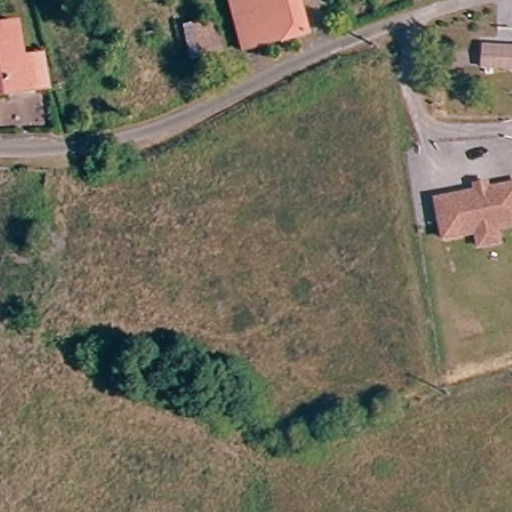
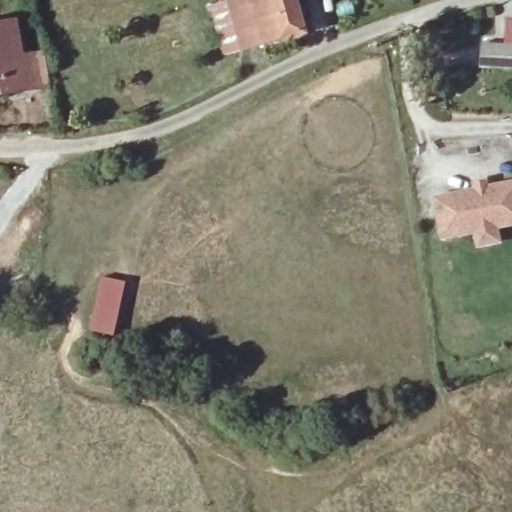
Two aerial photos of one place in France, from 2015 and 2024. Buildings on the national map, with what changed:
unchanged [(300,32),(237,49),(233,31),(225,0),(294,0),(300,32)]
unchanged [(14,22),(18,50),(37,50),(41,85),(23,85),(0,88),(0,24),(14,22)]
unchanged [(512,68),(490,69),(490,64),(488,50),(512,48),(512,68)]
unchanged [(477,184),(493,181),(496,188),(512,184),(512,231),(510,231),(512,241),(512,247),(483,252),(480,239),(450,244),(441,199),(479,191),(477,184)]
new [(103,277),(127,282),(116,337),(91,332),(103,277)]
unchanged [(3,310),(3,313),(0,325),(0,310),(3,310)]

